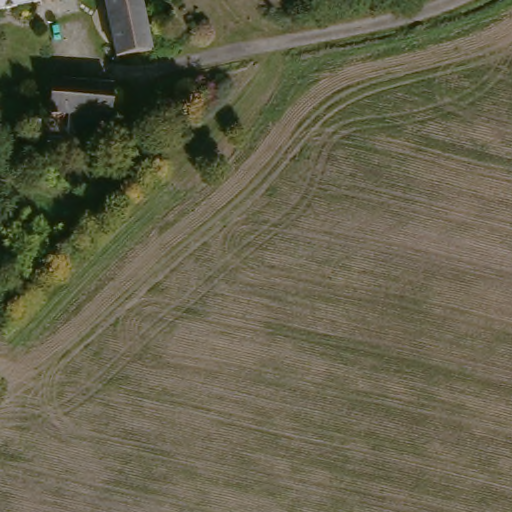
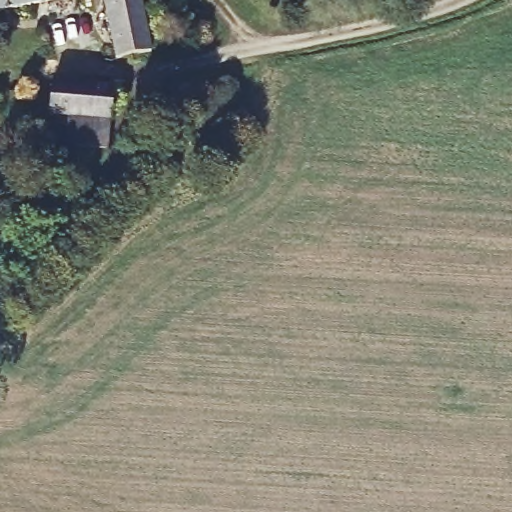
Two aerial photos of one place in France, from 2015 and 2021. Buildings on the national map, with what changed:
unchanged [(0,0),(71,0),(0,15),(0,0)]
unchanged [(94,0),(131,0),(142,57),(127,60),(106,65),(94,0)]
unchanged [(106,120),(45,114),(47,84),(109,91),(108,99),(106,120)]
unchanged [(103,148),(42,141),(45,114),(106,120),(103,148)]

